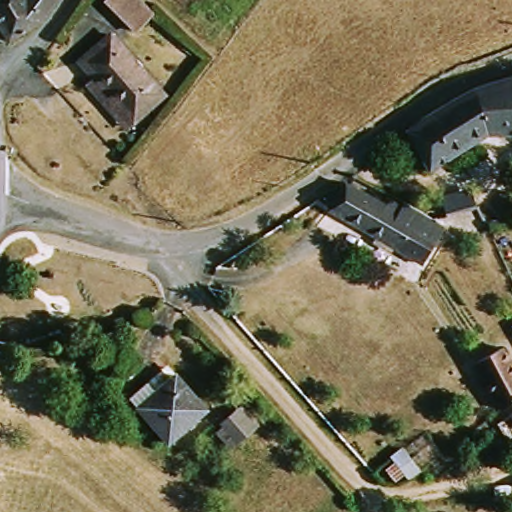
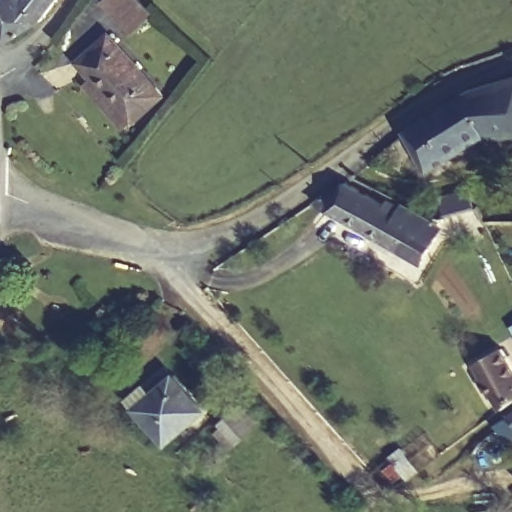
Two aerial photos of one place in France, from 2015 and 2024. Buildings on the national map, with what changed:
unchanged [(13,42),(0,21),(0,0),(63,0),(47,20),(13,42)]
unchanged [(140,31),(110,2),(112,0),(144,0),(158,14),(140,31)]
unchanged [(92,85),(100,79),(85,62),(115,35),(168,95),(138,122),(137,121),(130,127),(92,85)]
unchanged [(434,171),(412,132),(480,90),(512,80),(512,136),(491,136),(434,171)]
unchanged [(437,235),(442,237),(426,265),(320,203),(337,192),(342,195),(350,184),(394,209),(397,202),(409,209),(412,204),(445,224),(437,235)]
unchanged [(512,406),(506,410),(480,364),(508,348),(512,356),(512,406)]
unchanged [(180,375),(210,410),(173,443),(142,408),(180,375)]
unchanged [(216,433),(224,426),(222,424),(236,410),(241,406),(258,425),(253,430),(230,450),(216,433)]
unchanged [(502,425),(512,418),(512,440),(511,441),(502,425)]

